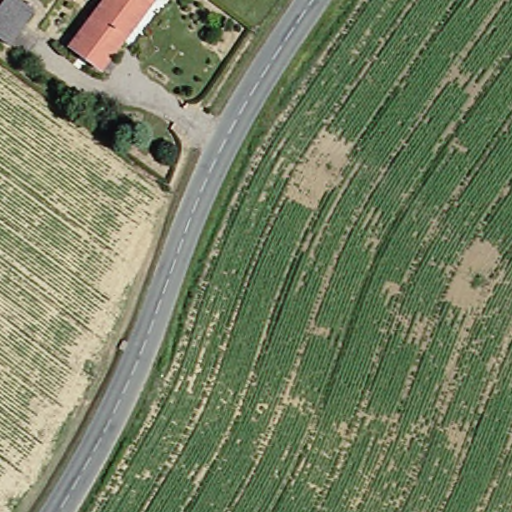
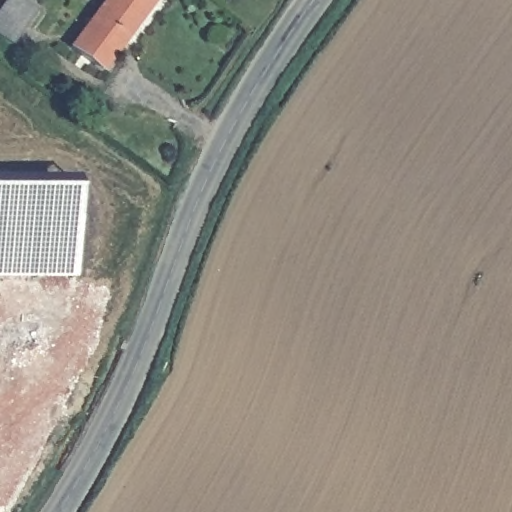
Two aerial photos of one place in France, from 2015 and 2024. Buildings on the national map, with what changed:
unchanged [(0,42),(0,2),(1,0),(15,0),(30,11),(4,45),(0,42)]
unchanged [(99,72),(65,50),(71,42),(103,0),(150,0),(152,1),(99,72)]
new [(0,279),(0,178),(72,177),(69,280),(0,279)]

